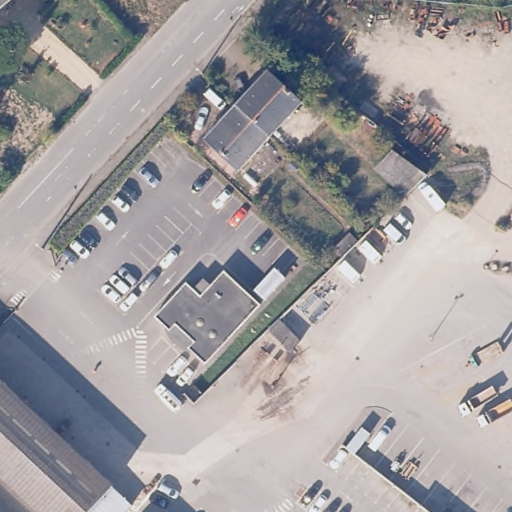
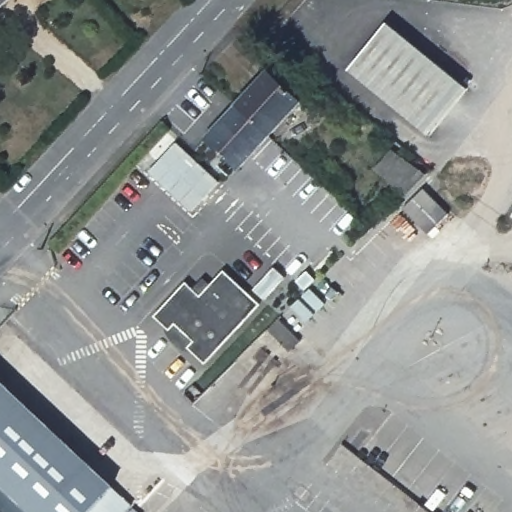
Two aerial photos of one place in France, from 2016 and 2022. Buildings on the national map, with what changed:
unchanged [(10,0),(0,9),(0,0),(10,0)]
new [(386,19),(468,87),(428,136),(346,69),(386,19)]
unchanged [(237,107),(270,73),(302,104),(270,138),(237,107)]
unchanged [(238,171),(205,140),(237,107),(270,138),(238,171)]
unchanged [(428,164),(400,193),(372,164),(394,140),(428,164)]
demolished [(361,240),(341,259),(333,252),(353,233),(361,240)]
unchanged [(151,317),(184,283),(191,290),(201,279),(209,286),(222,272),(258,305),(202,365),(185,349),(167,332),(151,317)]
unchanged [(130,503),(121,512),(0,512),(0,381),(130,503)]

